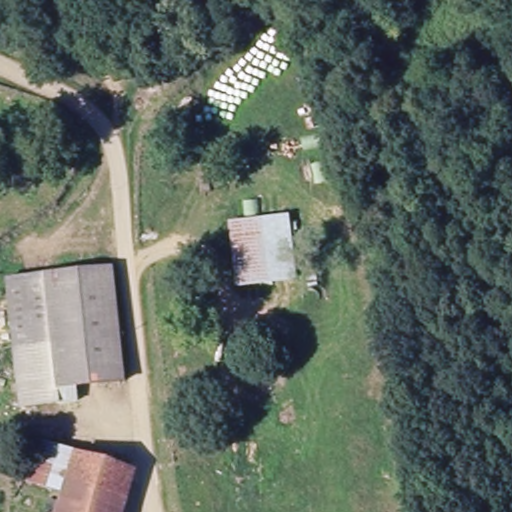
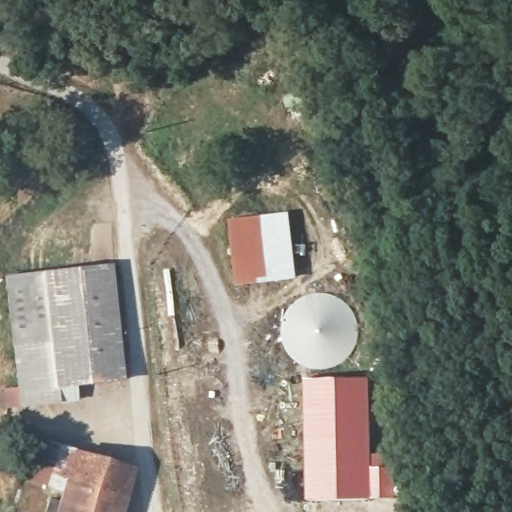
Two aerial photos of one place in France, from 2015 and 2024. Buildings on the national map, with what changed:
unchanged [(236,286),(227,219),(288,211),(297,278),(236,286)]
unchanged [(96,381),(50,383),(50,337),(7,337),(7,270),(113,270),(120,270),(124,380),(114,381),(96,381)]
unchanged [(50,337),(50,383),(50,396),(7,397),(7,337),(50,337)]
new [(306,499),(302,379),(369,378),(371,454),(385,454),(385,466),(394,466),(395,497),(306,499)]
unchanged [(39,482),(28,477),(43,437),(56,441),(78,450),(62,491),(39,482)]
unchanged [(78,450),(133,473),(121,512),(55,512),(62,491),(78,450)]

